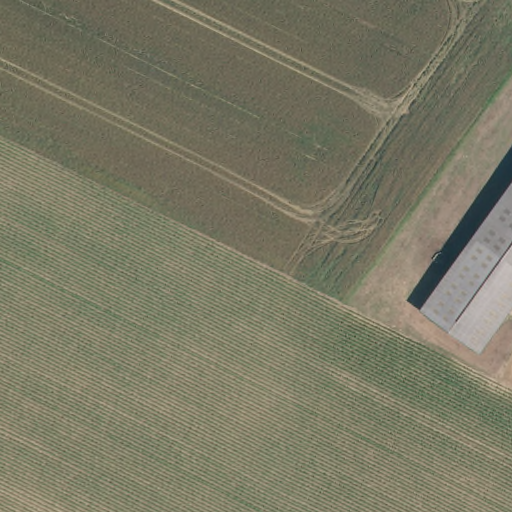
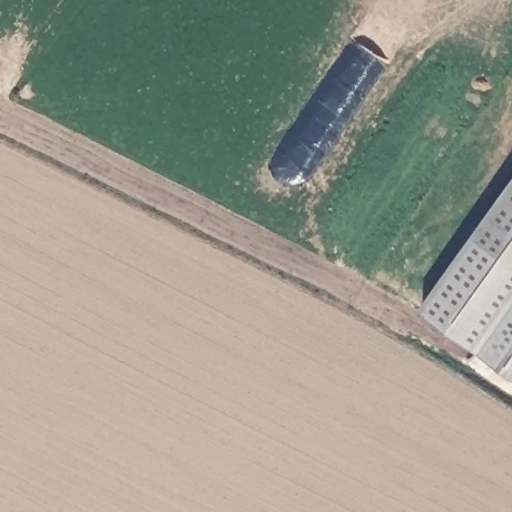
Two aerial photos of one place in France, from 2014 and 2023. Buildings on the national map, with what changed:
unchanged [(469,241),(512,182),(512,271),(469,241)]
unchanged [(483,354),(423,310),(471,243),(512,271),(512,312),(483,354)]
new [(483,354),(512,312),(512,374),(483,354)]

